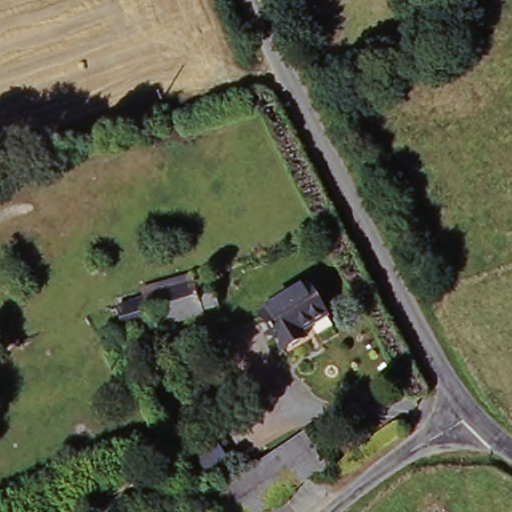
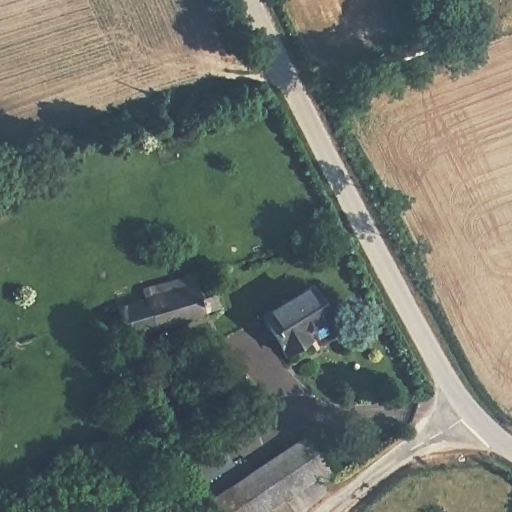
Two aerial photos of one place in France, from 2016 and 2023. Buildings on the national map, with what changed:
unchanged [(141,310),(173,298),(171,290),(194,284),(195,292),(210,287),(215,304),(217,314),(205,318),(203,324),(150,338),(125,345),(117,316),(141,310)]
unchanged [(312,286),(331,321),(309,330),(311,338),(284,353),(261,315),(312,286)]
unchanged [(210,508),(217,501),(241,482),(307,438),(330,467),(330,472),(331,476),(328,479),(325,480),(321,482),(316,481),(314,478),(265,512),(213,512),(210,508)]
unchanged [(165,488),(172,501),(165,506),(157,493),(165,488)]

